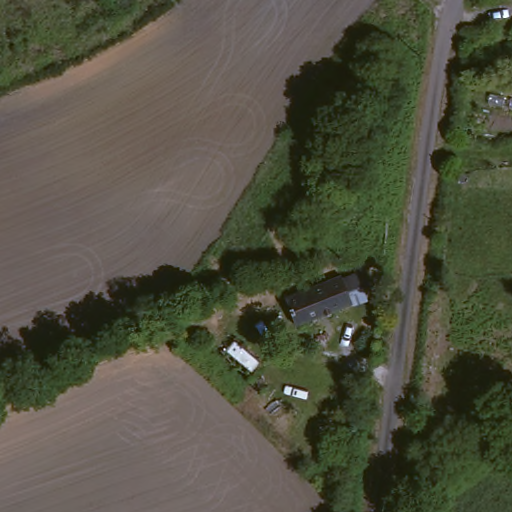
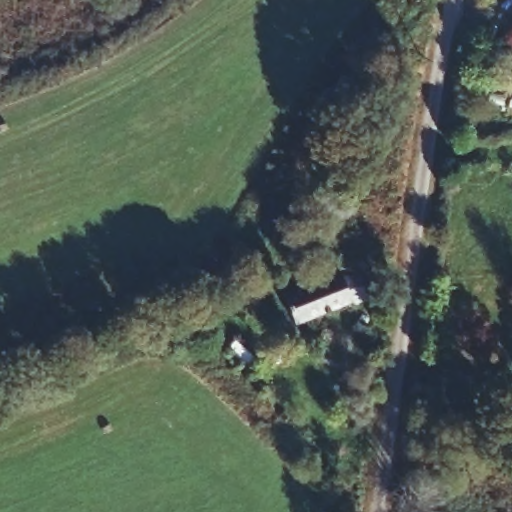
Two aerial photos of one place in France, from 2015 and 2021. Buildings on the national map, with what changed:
unchanged [(489,3),(491,0),(504,0),(502,8),(489,3)]
unchanged [(284,305),(333,279),(347,303),(298,329),(284,305)]

